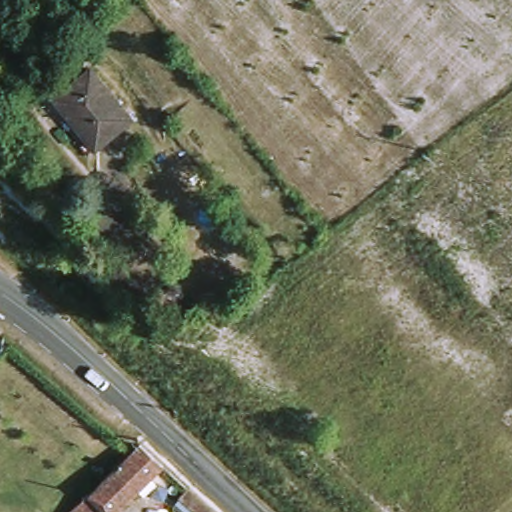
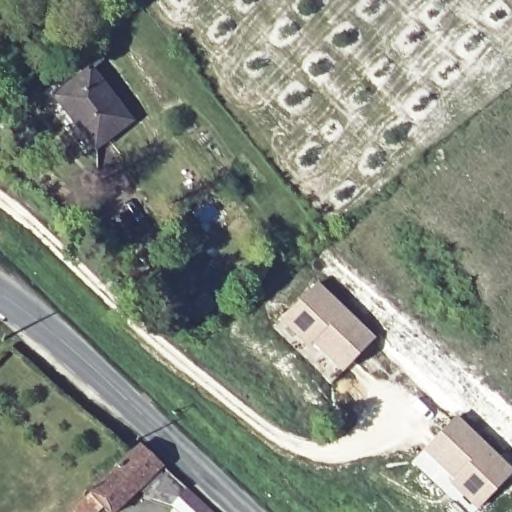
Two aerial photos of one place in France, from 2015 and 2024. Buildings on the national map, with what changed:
unchanged [(95,67),(137,119),(103,147),(61,95),(95,67)]
new [(316,283),(371,339),(327,382),(272,325),(316,283)]
new [(455,417),(510,473),(471,512),(462,512),(410,459),(455,417)]
unchanged [(91,512),(72,512),(143,445),(165,466),(117,512),(108,512),(100,504),(91,512)]
unchanged [(183,496),(192,487),(219,512),(200,512),(183,496)]

